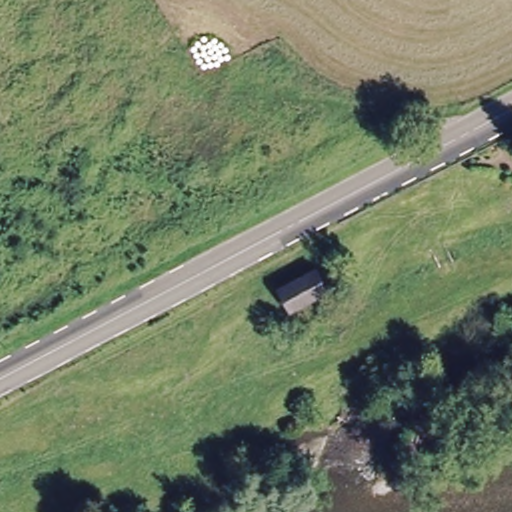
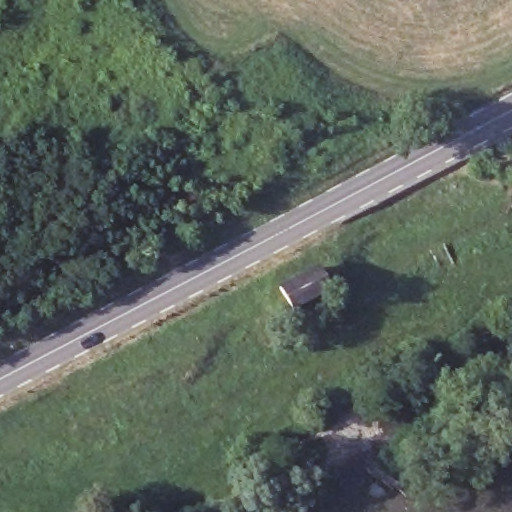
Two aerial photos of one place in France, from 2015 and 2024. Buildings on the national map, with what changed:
unchanged [(328,286),(291,306),(279,284),(317,264),(328,286)]

